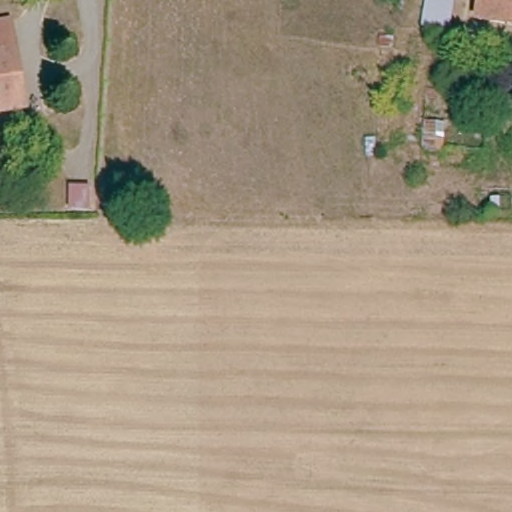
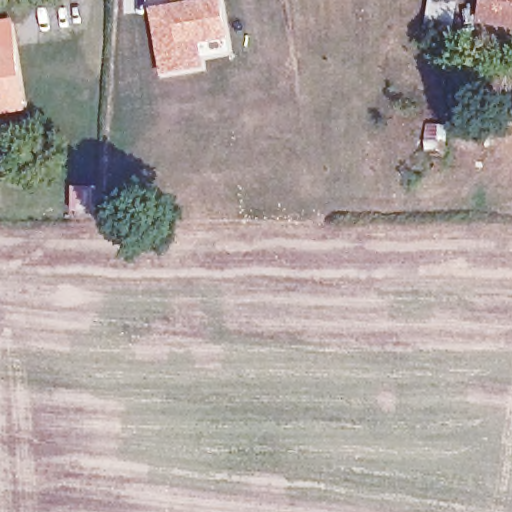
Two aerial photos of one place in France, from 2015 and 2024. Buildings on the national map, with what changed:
new [(191,0),(219,0),(226,39),(201,45),(204,68),(159,76),(147,7),(191,0)]
unchanged [(479,0),(512,0),(512,31),(475,24),(479,0)]
unchanged [(10,110),(0,111),(0,22),(6,21),(9,48),(12,64),(18,110),(10,110)]

